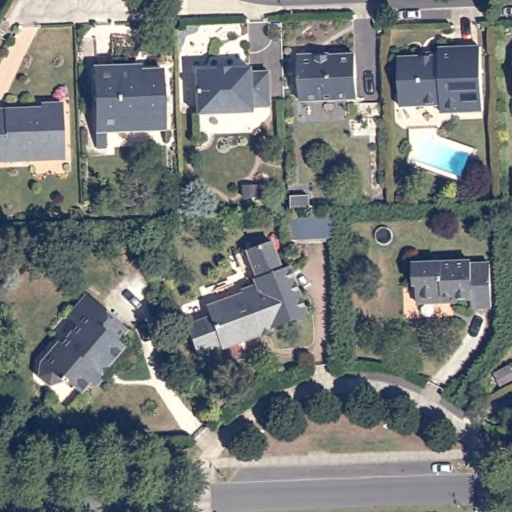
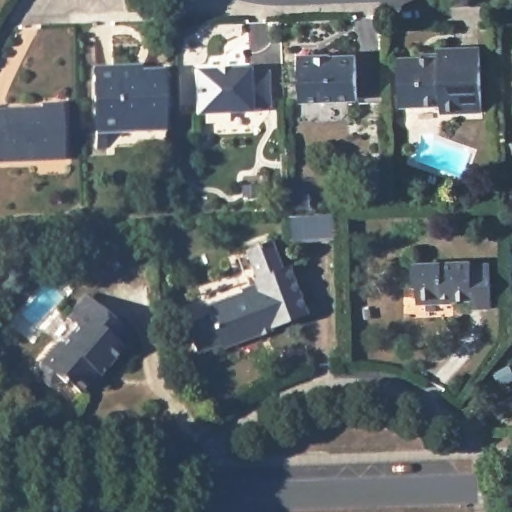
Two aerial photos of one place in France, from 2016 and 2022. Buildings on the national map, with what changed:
unchanged [(440,57),(439,49),(481,47),(482,112),(441,114),(441,105),(400,107),(399,58),(440,57)]
unchanged [(317,52),(319,57),(323,57),(325,57),(327,55),(356,53),(358,97),(301,99),(299,53),(317,52)]
unchanged [(93,145),(93,129),(91,67),(128,65),(136,65),(136,70),(157,70),(158,127),(103,129),(103,145),(93,145)]
unchanged [(250,71),(250,75),(267,75),(269,110),(252,111),(252,116),(198,117),(196,72),(250,71)]
unchanged [(32,107),(32,111),(40,111),(40,103),(62,102),(64,157),(0,159),(0,109),(32,107)]
unchanged [(287,216),(331,214),(331,236),(287,237),(287,216)]
unchanged [(210,318),(207,309),(243,297),(242,293),(256,288),(254,283),(258,282),(248,253),(272,245),(282,273),(289,270),(306,318),(272,330),(271,327),(256,333),(257,337),(222,350),(221,346),(197,354),(187,327),(210,318)]
unchanged [(470,262),(471,264),(491,264),(491,306),(472,307),(471,298),(453,298),(453,295),(443,295),(440,300),(416,301),(416,285),(413,285),(412,263),(470,262)]
unchanged [(115,342),(122,347),(99,373),(103,377),(94,387),(88,382),(79,392),(66,381),(63,382),(60,380),(46,385),(35,375),(37,361),(56,340),(59,342),(74,324),(71,322),(63,315),(83,293),(91,299),(126,330),(115,342)]

